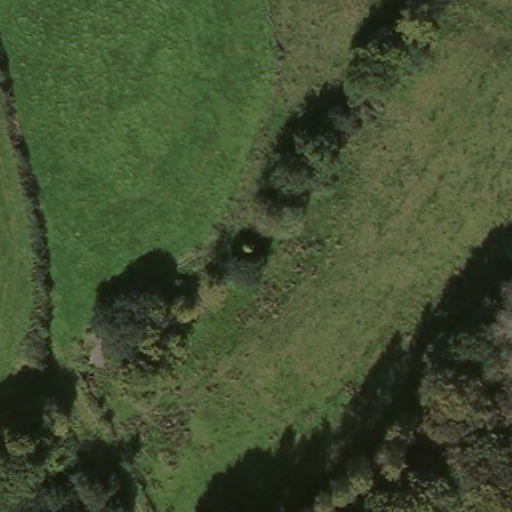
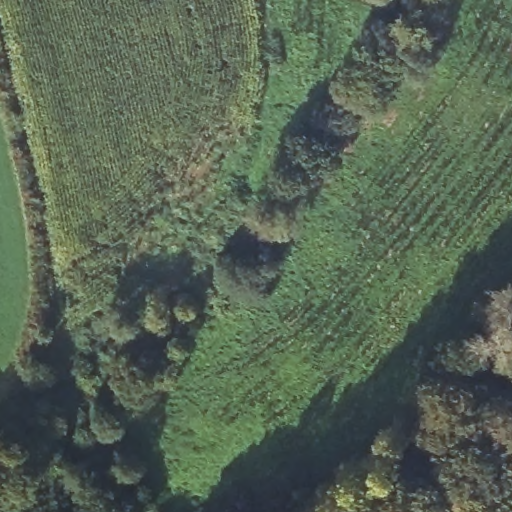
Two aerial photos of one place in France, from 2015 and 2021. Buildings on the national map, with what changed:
[]

